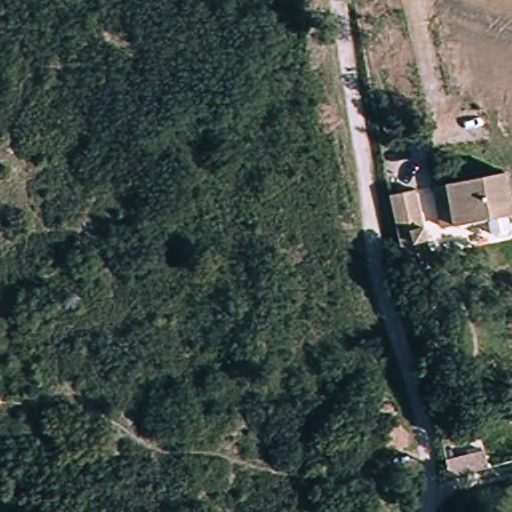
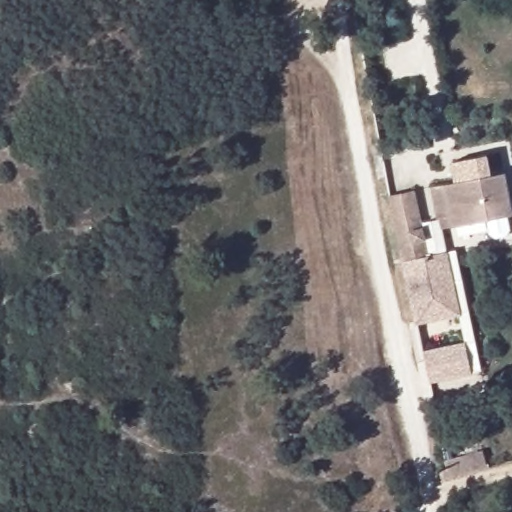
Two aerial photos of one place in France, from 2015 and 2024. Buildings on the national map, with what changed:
unchanged [(512,216),(451,228),(449,219),(438,221),(430,185),(505,170),(512,208),(512,216)]
unchanged [(411,193),(423,252),(403,256),(391,197),(411,193)]
new [(415,325),(403,256),(423,252),(417,222),(437,217),(438,221),(449,219),(451,228),(442,230),(447,249),(445,249),(460,315),(415,325)]
new [(426,359),(425,350),(466,342),(445,249),(455,247),(481,367),(471,369),(428,378),(426,359)]

